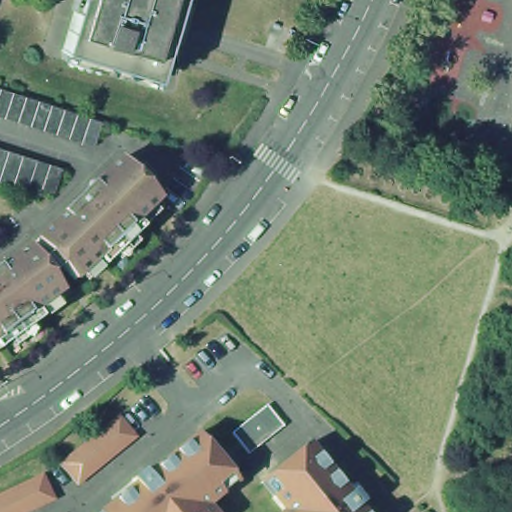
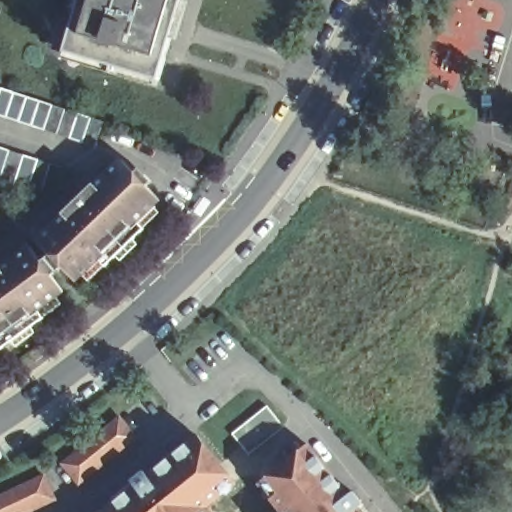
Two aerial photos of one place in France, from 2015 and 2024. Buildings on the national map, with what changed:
unchanged [(57,53),(73,0),(175,0),(150,81),(57,53)]
unchanged [(6,92),(20,97),(31,101),(45,105),(58,109),(70,113),(83,117),(96,121),(88,148),(75,143),(62,139),(50,135),(37,131),(23,127),(11,123),(0,120),(0,91),(6,92)]
unchanged [(23,190),(21,196),(6,191),(0,189),(0,155),(2,156),(16,160),(31,165),(44,169),(57,173),(49,198),(36,194),(23,190)]
unchanged [(32,241),(58,215),(60,217),(70,209),(66,204),(78,195),(81,198),(91,190),(88,187),(115,161),(153,201),(131,221),(140,231),(100,268),(92,260),(70,280),(32,241)]
unchanged [(27,246),(59,291),(34,309),(40,319),(0,346),(0,270),(0,265),(27,246)]
unchanged [(257,422),(271,410),(287,430),(288,431),(253,459),(236,438),(257,422)]
unchanged [(131,437),(73,484),(56,463),(115,416),(131,437)]
unchanged [(125,485),(121,481),(133,471),(137,475),(187,436),(219,476),(226,484),(211,496),(196,508),(199,512),(93,512),(125,485)]
unchanged [(265,497),(253,481),(260,475),(302,444),(340,497),(345,493),(355,506),(350,510),(351,512),(276,512),(265,497)]
unchanged [(50,504),(33,512),(0,512),(0,498),(38,480),(50,504)]

